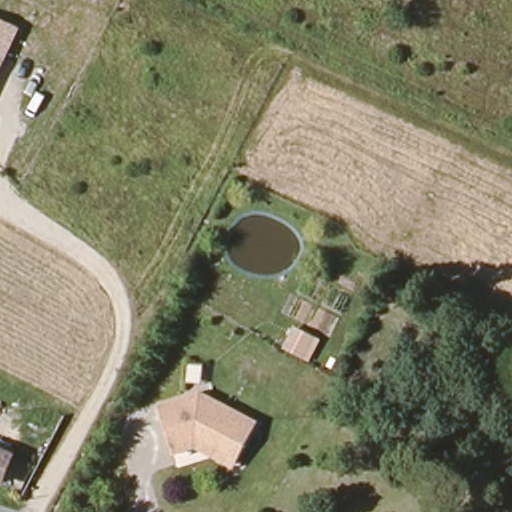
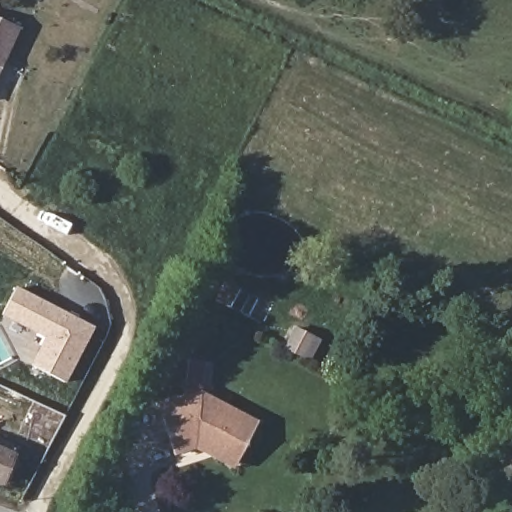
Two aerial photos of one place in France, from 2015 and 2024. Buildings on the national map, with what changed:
unchanged [(0,16),(21,27),(0,69),(0,16)]
new [(92,325),(65,380),(32,363),(47,333),(1,311),(14,285),(92,325)]
unchanged [(189,404),(197,408),(206,392),(257,419),(236,460),(200,442),(173,450),(158,400),(186,392),(189,404)]
unchanged [(0,486),(0,455),(11,460),(3,487),(0,486)]

